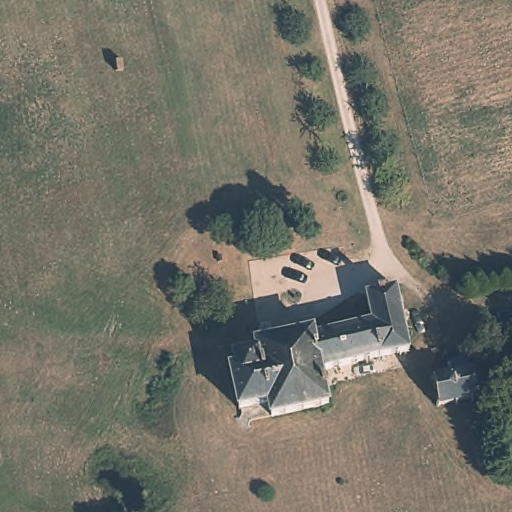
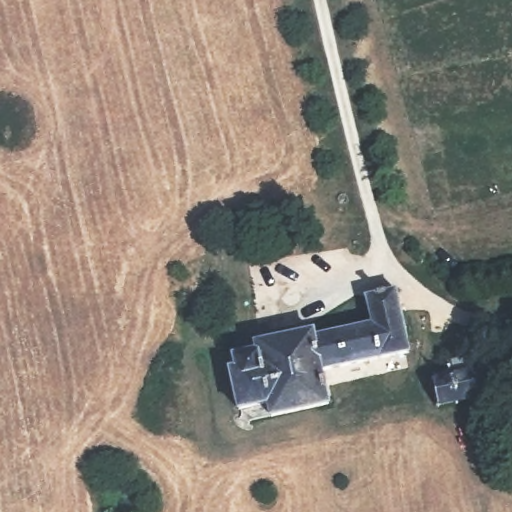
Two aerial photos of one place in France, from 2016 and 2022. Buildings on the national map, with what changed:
unchanged [(410,350),(322,369),(328,404),(268,415),(265,402),(240,407),(231,366),(240,363),(238,352),(260,348),(259,340),(314,328),(316,335),(374,322),(369,292),(399,286),(410,350)]
unchanged [(437,376),(449,373),(447,358),(470,354),(472,368),(486,366),(489,367),(493,369),(496,372),(497,375),(498,379),(499,389),(441,401),(437,376)]

